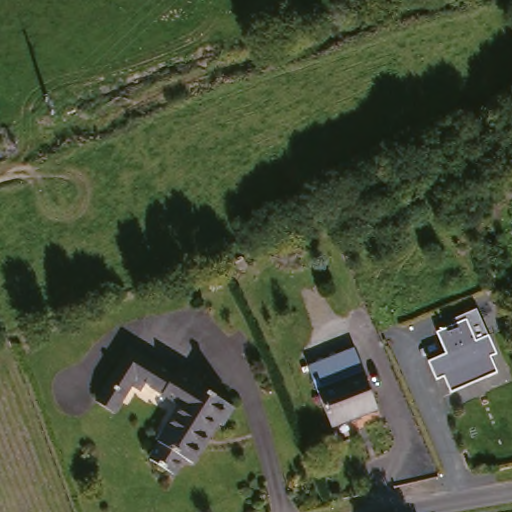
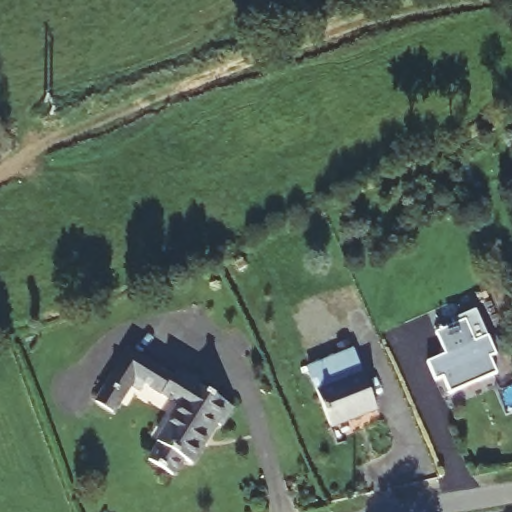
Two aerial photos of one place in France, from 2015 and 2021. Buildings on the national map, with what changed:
unchanged [(451,395),(443,378),(435,381),(427,362),(445,354),(435,332),(479,313),(498,356),(491,358),(499,375),(451,395)]
unchanged [(353,346),(371,409),(317,424),(299,361),(353,346)]
unchanged [(171,376),(176,367),(195,377),(190,386),(229,407),(221,422),(218,420),(194,463),(187,459),(178,475),(151,460),(160,445),(157,443),(179,403),(142,383),(137,390),(127,385),(123,393),(112,413),(93,403),(104,383),(124,350),(171,376)]

